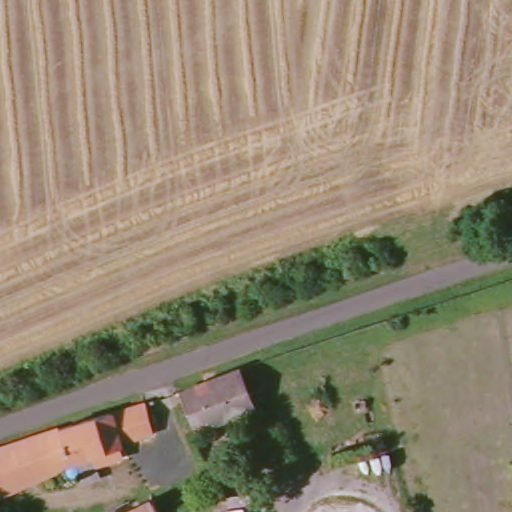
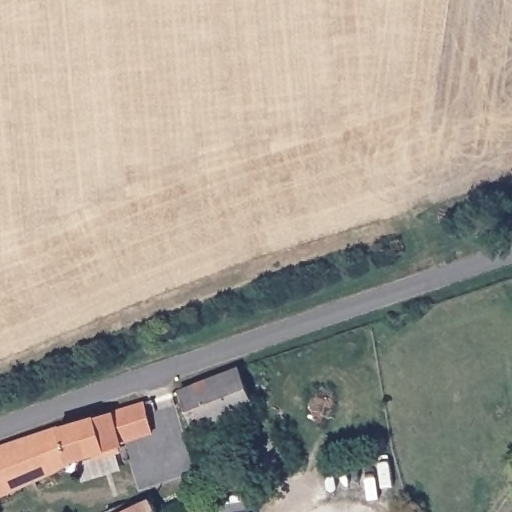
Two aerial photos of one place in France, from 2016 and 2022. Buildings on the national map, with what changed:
unchanged [(187,393),(244,371),(255,406),(201,428),(187,393)]
unchanged [(140,409),(150,433),(120,445),(121,451),(57,473),(42,438),(140,409)]
unchanged [(42,438),(57,473),(0,495),(0,451),(42,438)]
unchanged [(151,503),(156,512),(134,512),(151,503)]

